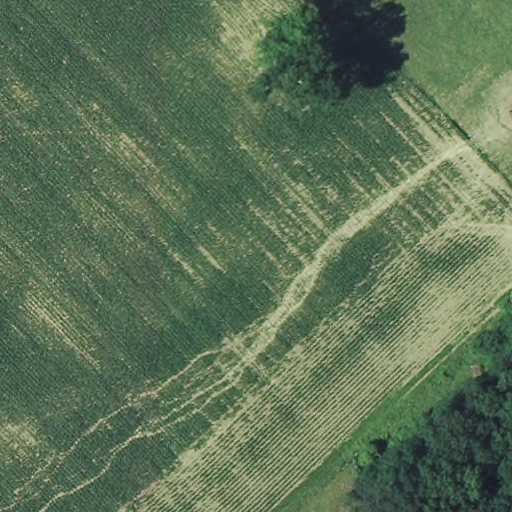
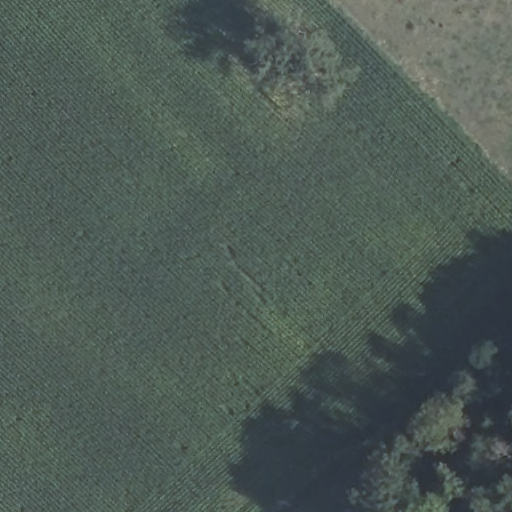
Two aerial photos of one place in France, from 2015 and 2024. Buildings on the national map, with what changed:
unchanged [(395,487),(386,498),(364,480),(374,469),(395,487)]

